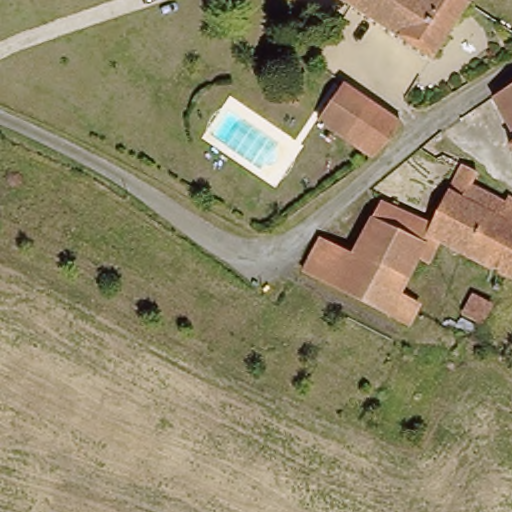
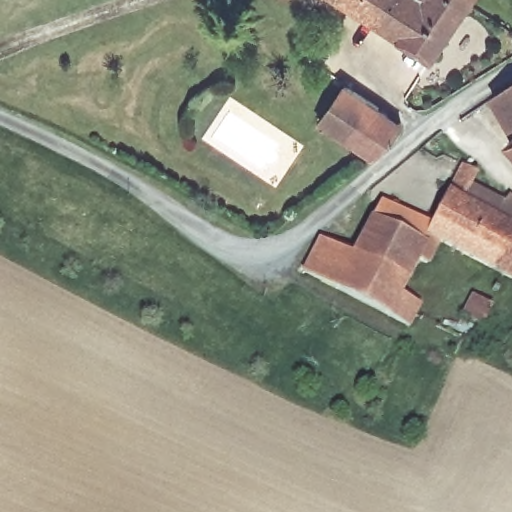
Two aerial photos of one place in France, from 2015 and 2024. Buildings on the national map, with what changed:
unchanged [(430,57),(341,0),(464,0),(467,2),(430,57)]
unchanged [(467,2),(464,0),(468,0),(467,2)]
unchanged [(318,115),(342,82),(332,74),(337,69),(347,76),(345,82),(401,116),(390,134),(371,149),(318,115)]
unchanged [(512,81),(512,127),(492,92),(512,81)]
unchanged [(508,142),(512,139),(512,146),(508,142)]
unchanged [(511,273),(437,237),(425,257),(420,257),(418,252),(435,219),(429,217),(447,187),(460,161),(475,170),(470,182),(501,197),(506,192),(512,195),(512,273),(511,273)]
unchanged [(381,197),(390,200),(392,196),(397,199),(397,204),(429,217),(435,219),(418,252),(406,273),(351,247),(381,197)]
unchanged [(351,247),(406,273),(400,291),(418,299),(414,309),(406,319),(305,267),(320,234),(351,247)]
unchanged [(491,304),(481,323),(462,315),(472,295),(491,304)]

